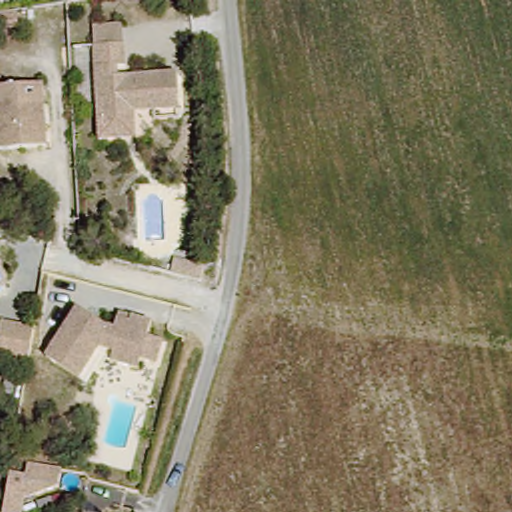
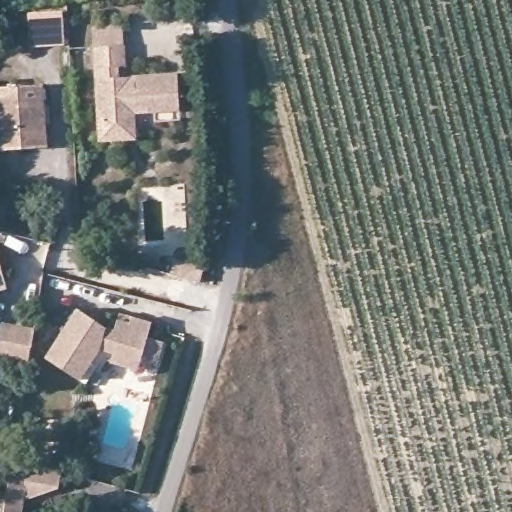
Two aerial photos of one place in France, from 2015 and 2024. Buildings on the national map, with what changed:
unchanged [(104,138),(100,44),(99,24),(130,22),(130,42),(131,65),(123,65),(124,75),(135,75),(184,72),(186,108),(140,110),(141,136),(130,137),(104,138)]
unchanged [(0,147),(0,85),(49,82),(52,145),(0,147)]
unchanged [(168,273),(172,258),(202,265),(198,280),(168,273)]
unchanged [(0,286),(0,269),(4,285),(0,286)]
unchanged [(162,360),(147,355),(144,365),(106,354),(88,378),(50,350),(84,303),(110,322),(120,325),(123,315),(135,319),(137,312),(157,318),(153,332),(168,336),(162,360)]
unchanged [(0,358),(5,320),(43,327),(33,365),(0,358)]
unchanged [(11,473),(26,474),(29,461),(71,469),(68,486),(37,482),(32,501),(25,500),(22,512),(4,512),(11,473)]

